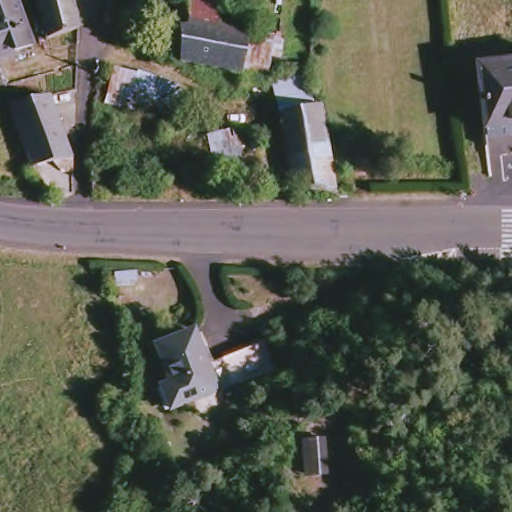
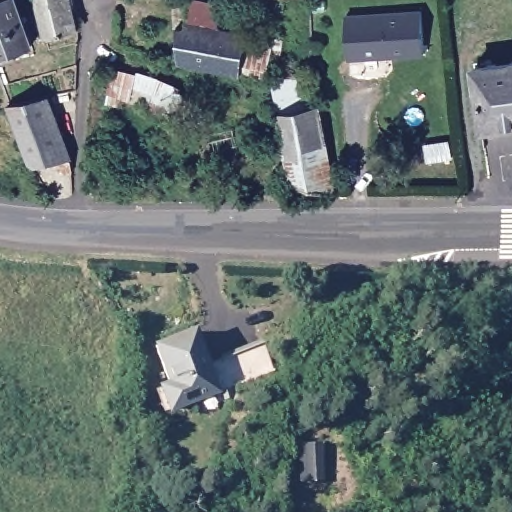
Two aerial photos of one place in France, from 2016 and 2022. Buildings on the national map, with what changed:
unchanged [(0,1),(0,0),(3,0),(0,1)]
unchanged [(3,0),(20,0),(35,46),(17,52),(0,58),(0,1),(3,0)]
unchanged [(45,37),(35,2),(35,0),(72,0),(77,21),(79,28),(45,37)]
unchanged [(238,74),(177,60),(175,26),(185,25),(185,19),(171,19),(171,0),(213,0),(217,1),(220,26),(248,30),(247,27),(282,34),(279,59),(270,56),(265,79),(238,74)]
new [(344,17),(420,12),(423,55),(347,61),(344,17)]
unchanged [(470,67),(512,62),(512,126),(478,131),(470,67)]
unchanged [(111,67),(135,72),(135,70),(158,77),(177,85),(189,96),(172,119),(146,106),(120,101),(118,107),(102,104),(111,67)]
unchanged [(290,196),(275,113),(270,82),(305,74),(315,106),(320,104),(335,191),(290,196)]
unchanged [(7,104),(50,96),(72,164),(73,171),(57,174),(52,164),(32,170),(7,104)]
unchanged [(205,135),(240,126),(248,163),(215,172),(205,135)]
unchanged [(413,274),(425,274),(424,280),(413,280),(413,274)]
unchanged [(174,417),(164,393),(174,388),(159,352),(197,337),(204,353),(209,352),(216,367),(267,349),(277,376),(174,417)]
unchanged [(320,446),(324,482),(299,485),(295,447),(320,446)]

